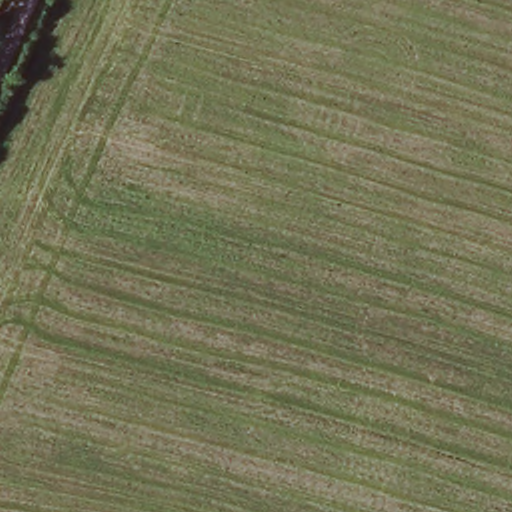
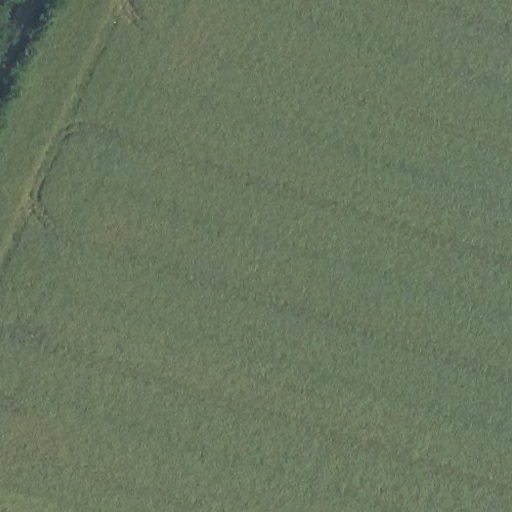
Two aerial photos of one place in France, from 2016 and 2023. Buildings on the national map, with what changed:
[]

